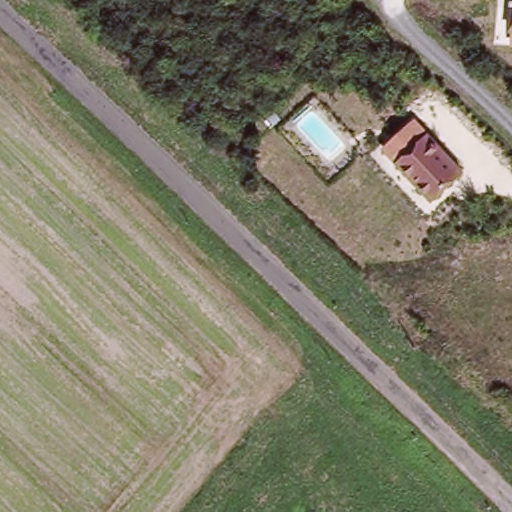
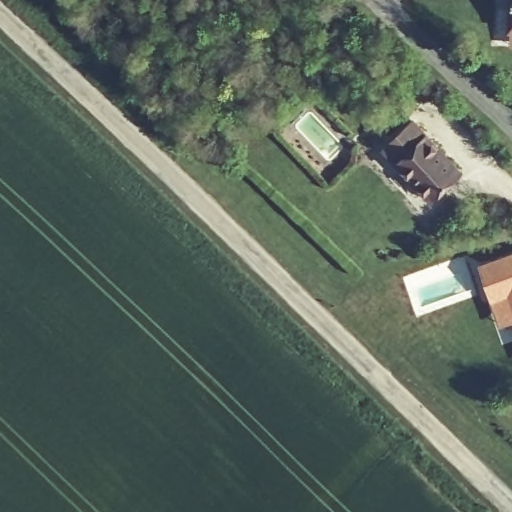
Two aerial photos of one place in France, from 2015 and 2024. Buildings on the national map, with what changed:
unchanged [(511,0),(512,0),(512,33),(509,33),(511,0)]
unchanged [(381,149),(415,118),(465,172),(432,202),(381,149)]
new [(512,251),(512,340),(501,344),(476,265),(512,251)]

